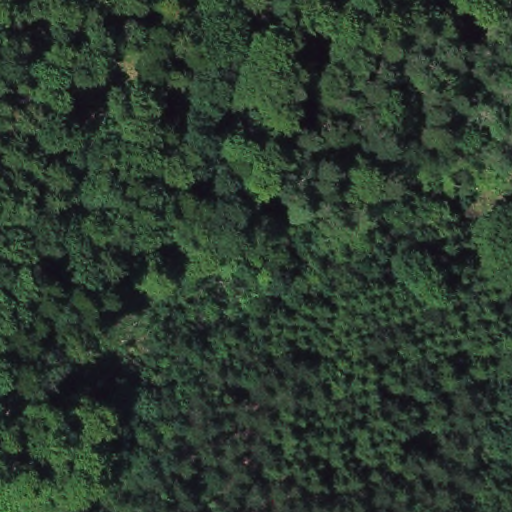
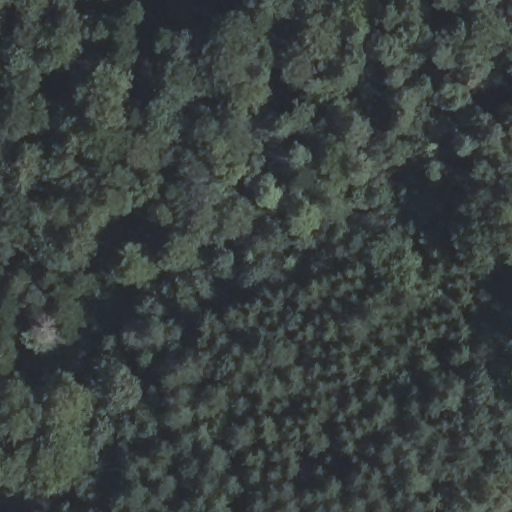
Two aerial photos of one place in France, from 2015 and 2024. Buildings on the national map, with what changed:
[]

